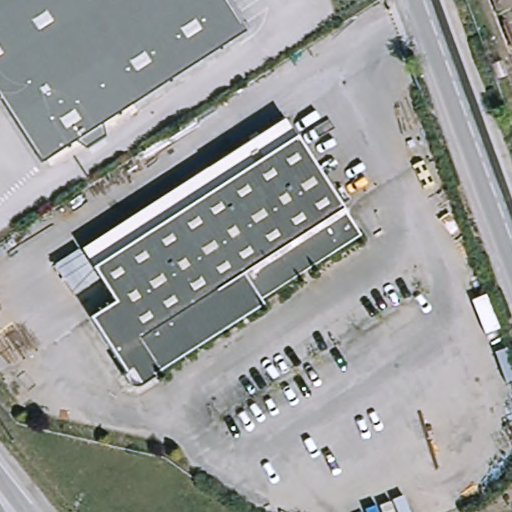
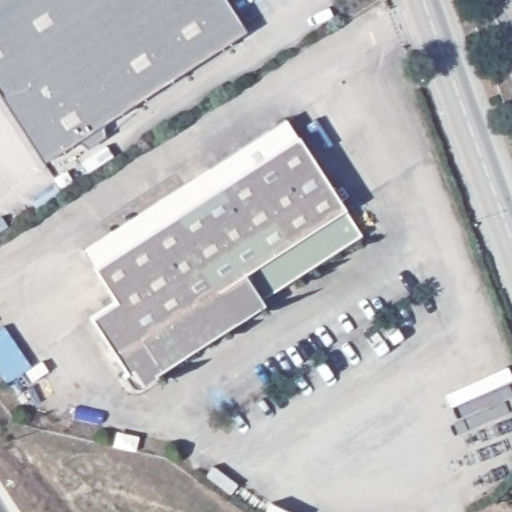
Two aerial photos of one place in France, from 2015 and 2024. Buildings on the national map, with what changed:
unchanged [(244,32),(101,124),(102,135),(85,146),(76,140),(41,162),(0,99),(0,0),(224,0),(244,32)]
unchanged [(93,270),(97,278),(80,248),(278,121),(295,144),(93,270)]
unchanged [(359,233),(258,298),(260,302),(153,371),(154,374),(139,384),(138,385),(135,386),(132,386),(130,385),(128,383),(126,381),(121,373),(124,370),(94,323),(119,307),(96,272),(223,191),(300,142),(359,233)]
new [(4,321),(1,323),(31,366),(7,384),(0,375),(0,319),(1,318),(4,321)]

